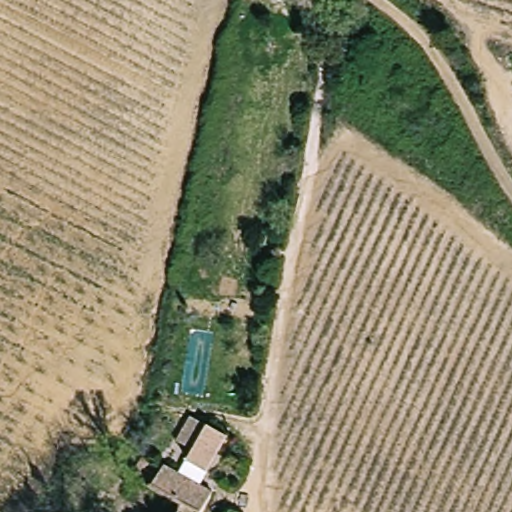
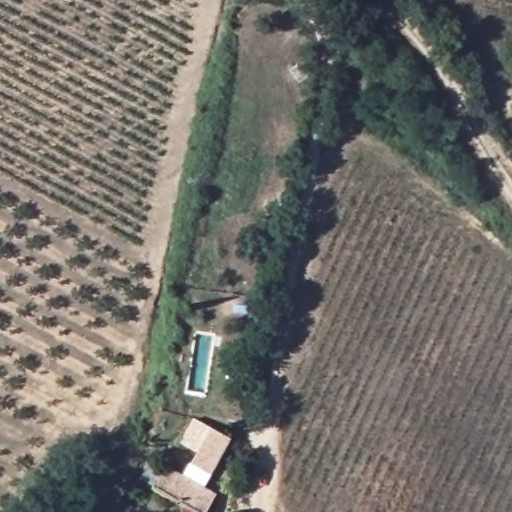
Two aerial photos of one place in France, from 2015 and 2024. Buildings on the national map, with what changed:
unchanged [(204,475),(199,484),(212,493),(200,512),(194,512),(181,504),(152,487),(166,466),(182,475),(187,467),(196,450),(180,441),(187,429),(194,416),(226,435),(221,445),(204,475)]

